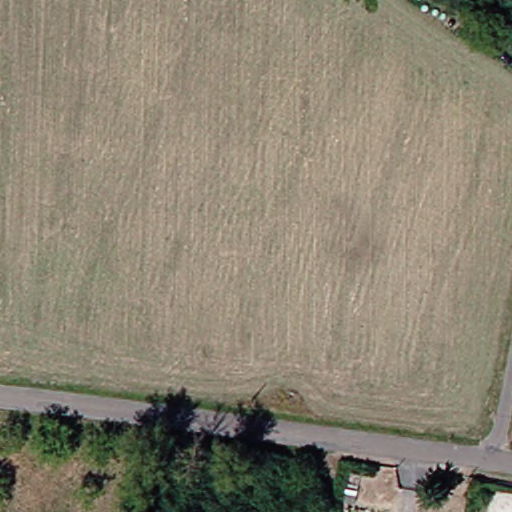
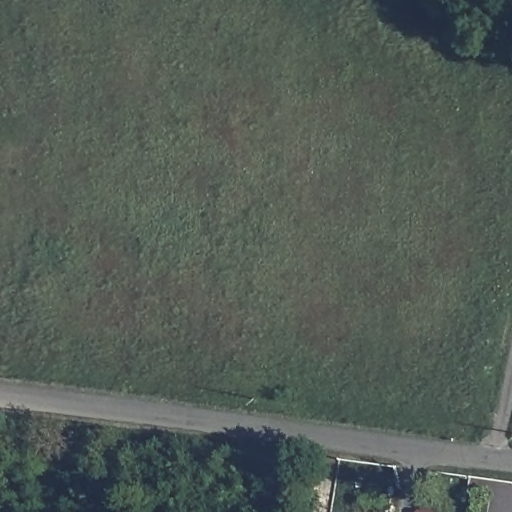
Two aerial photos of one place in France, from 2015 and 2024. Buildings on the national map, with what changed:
[]

